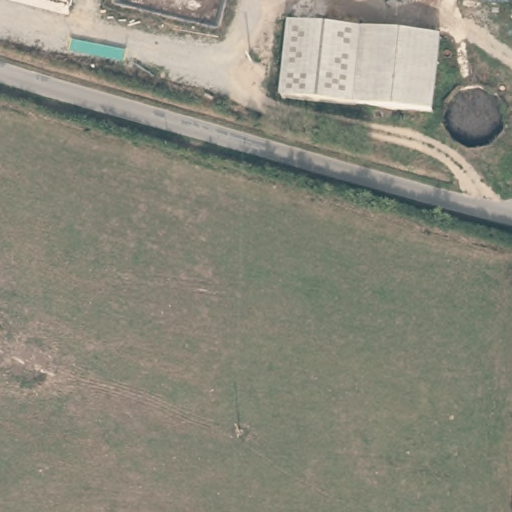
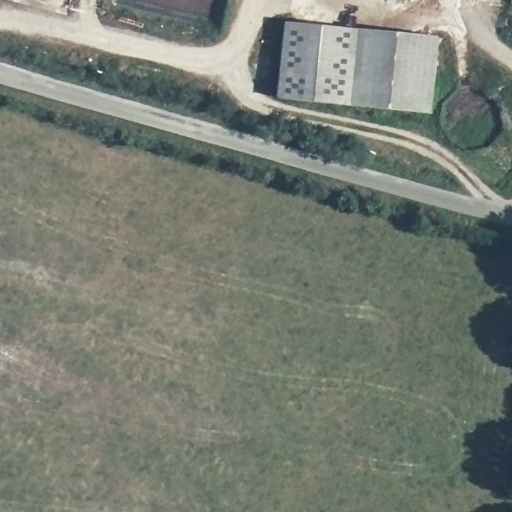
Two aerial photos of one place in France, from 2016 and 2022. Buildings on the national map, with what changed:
unchanged [(362,29),(353,109),(280,98),(289,25),(362,29)]
unchanged [(444,36),(436,114),(353,109),(362,29),(444,36)]

